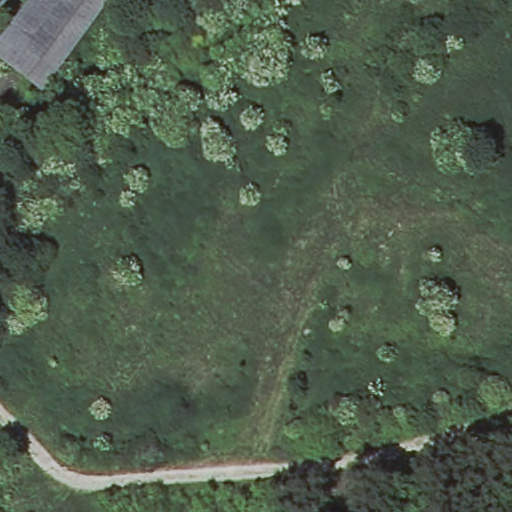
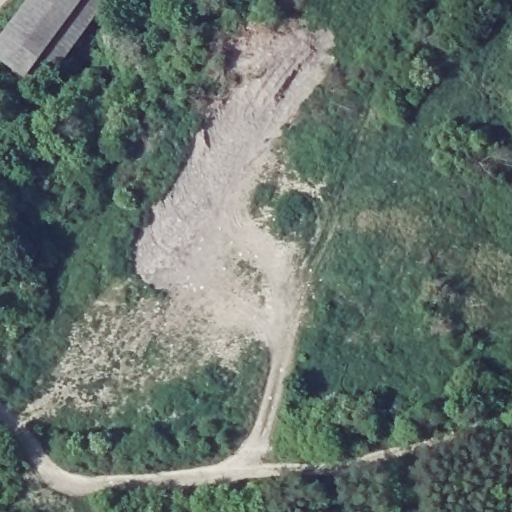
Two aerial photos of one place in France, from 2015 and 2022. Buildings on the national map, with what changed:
unchanged [(0,59),(0,43),(31,0),(106,0),(45,85),(43,89),(0,59)]

